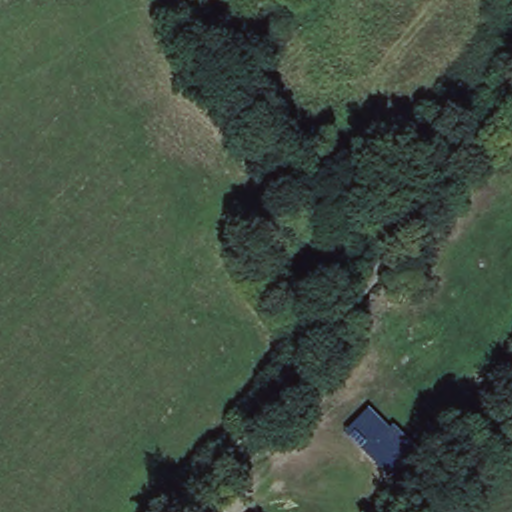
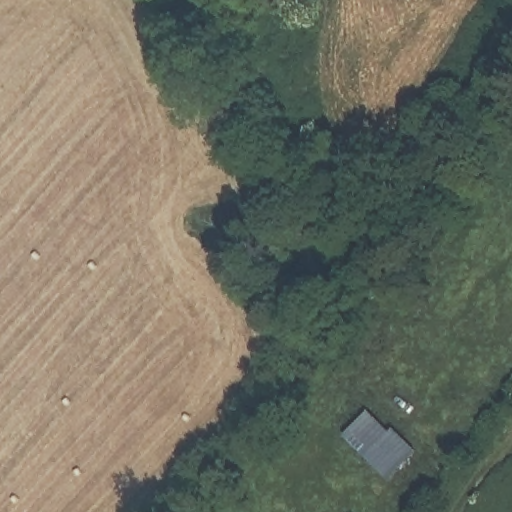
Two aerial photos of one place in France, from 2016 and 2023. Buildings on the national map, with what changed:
unchanged [(387,477),(344,435),(370,410),(391,432),(395,428),(413,446),(387,477)]

